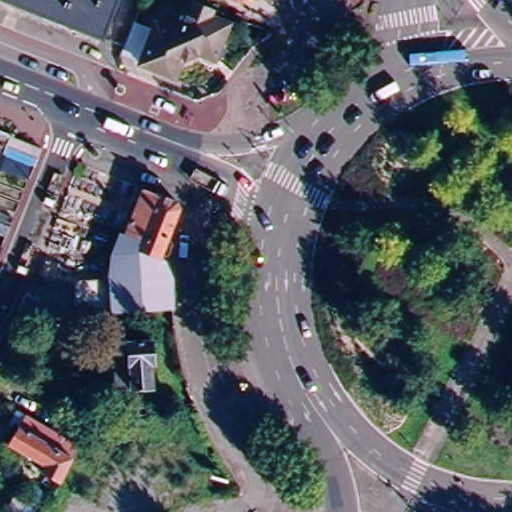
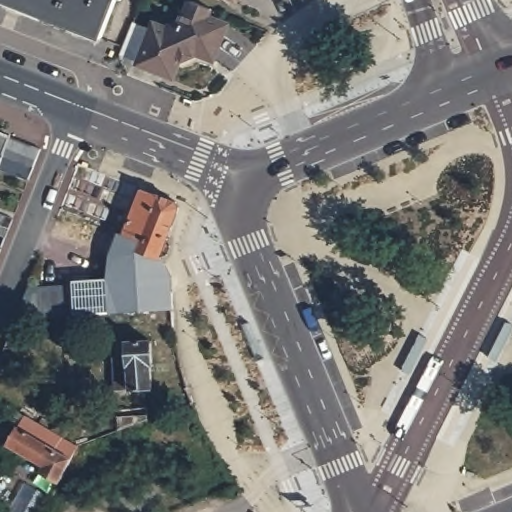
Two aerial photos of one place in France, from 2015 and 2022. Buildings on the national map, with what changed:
unchanged [(98,39),(0,0),(114,0),(98,39)]
unchanged [(217,0),(240,0),(236,9),(217,0)]
unchanged [(212,11),(210,19),(227,26),(214,61),(197,54),(180,62),(173,79),(138,65),(153,26),(167,31),(168,27),(177,25),(181,26),(190,2),(212,11)]
unchanged [(29,180),(2,170),(0,175),(0,134),(41,150),(29,180)]
unchanged [(102,312),(80,313),(37,317),(13,318),(23,294),(90,290),(90,285),(112,283),(125,250),(120,246),(143,191),(157,196),(173,202),(178,209),(168,240),(170,245),(169,247),(167,258),(162,258),(161,265),(165,277),(167,306),(102,312)]
unchanged [(0,214),(13,219),(6,238),(0,236),(0,214)]
unchanged [(0,254),(0,245),(3,246),(0,254)]
unchanged [(35,342),(26,359),(7,349),(15,332),(35,342)]
unchanged [(160,338),(162,361),(161,362),(162,386),(125,390),(122,340),(160,338)]
unchanged [(113,415),(142,412),(142,419),(115,428),(113,415)]
unchanged [(0,465),(9,447),(12,450),(20,436),(16,434),(22,422),(60,443),(54,455),(37,485),(0,465)]

